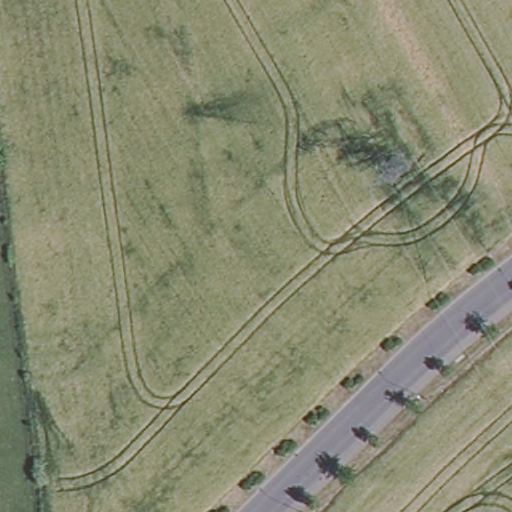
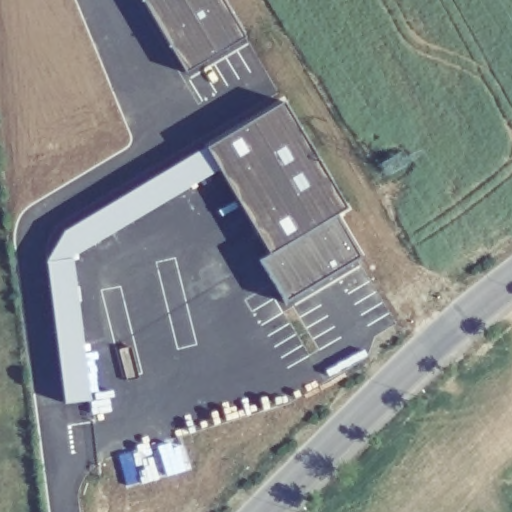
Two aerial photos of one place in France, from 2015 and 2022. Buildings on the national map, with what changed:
new [(185,74),(141,0),(222,0),(245,38),(185,74)]
new [(283,102),(346,210),(269,256),(205,149),(283,102)]
new [(335,217),(360,258),(285,303),(260,262),(335,217)]

